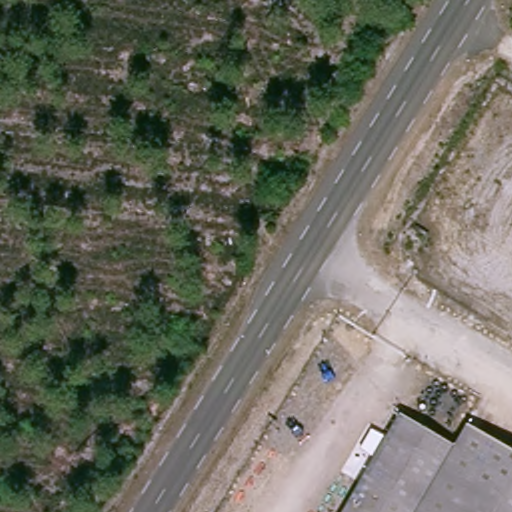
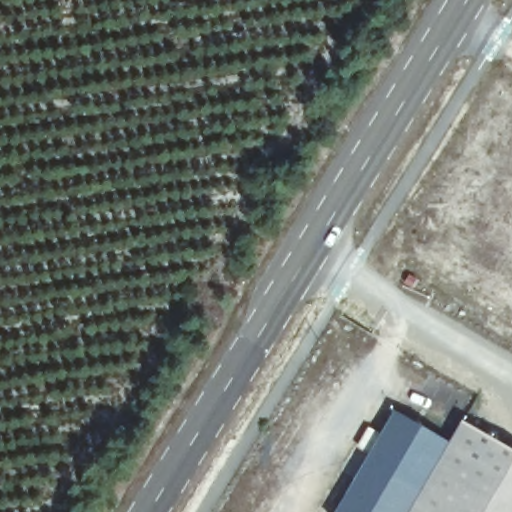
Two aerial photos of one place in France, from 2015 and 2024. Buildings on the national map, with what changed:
unchanged [(448,447),(457,428),(512,459),(512,512),(337,512),(392,415),(448,447)]

